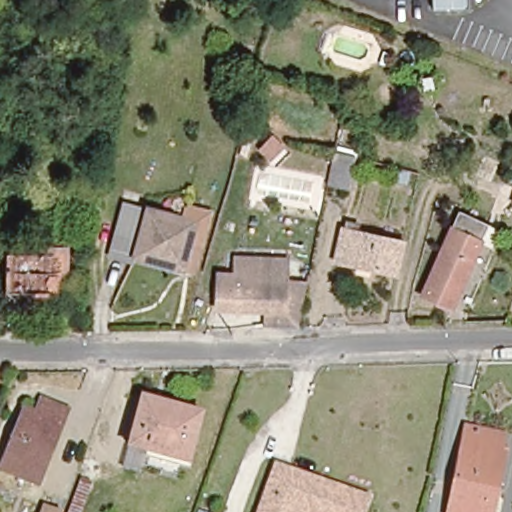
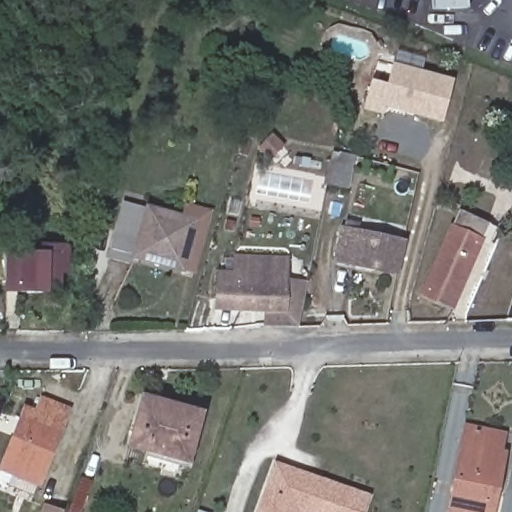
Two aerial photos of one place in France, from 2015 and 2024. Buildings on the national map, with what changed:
new [(454,79),(443,124),(384,108),(381,114),(363,109),(370,80),(386,84),(393,62),(454,79)]
demolished [(0,74),(0,67),(3,68),(0,74)]
unchanged [(270,136),(282,146),(269,159),(258,147),(270,136)]
unchanged [(362,162),(354,191),(332,186),(339,155),(362,162)]
unchanged [(153,265),(128,257),(145,203),(215,225),(199,273),(155,260),(153,265)]
unchanged [(421,288),(465,212),(483,222),(494,228),(484,247),(452,303),(421,288)]
unchanged [(337,261),(346,230),(406,246),(397,277),(337,261)]
unchanged [(62,256),(59,293),(6,290),(9,253),(62,256)]
unchanged [(219,303),(220,275),(233,275),(234,259),(287,260),(287,280),(285,311),(269,311),(240,310),(219,310),(219,303)]
unchanged [(302,325),(269,325),(269,311),(285,311),(287,280),(310,281),(302,325)]
unchanged [(141,398),(198,415),(184,461),(127,447),(141,398)]
unchanged [(35,416),(41,402),(66,413),(38,484),(0,469),(0,465),(24,412),(35,416)]
unchanged [(505,440),(500,457),(507,460),(491,512),(443,512),(466,430),(505,440)]
unchanged [(367,501),(362,512),(262,512),(279,468),(367,501)]
unchanged [(95,481),(83,512),(67,512),(81,475),(95,481)]
unchanged [(59,504),(56,510),(61,512),(43,512),(48,500),(59,504)]

